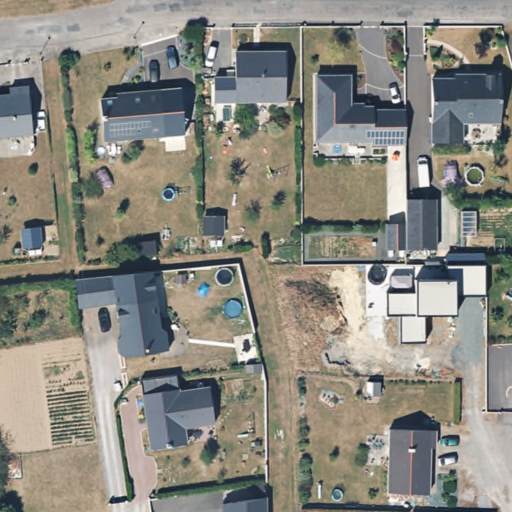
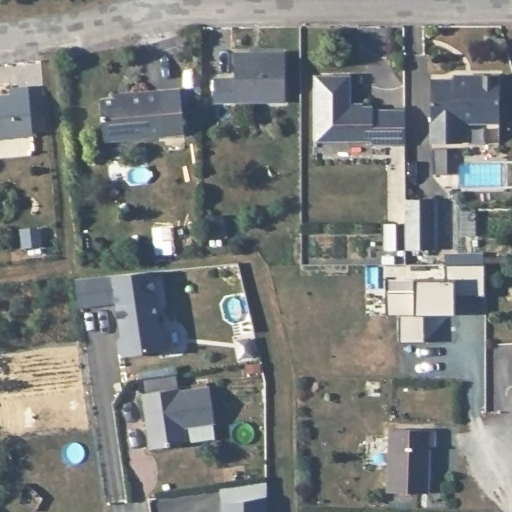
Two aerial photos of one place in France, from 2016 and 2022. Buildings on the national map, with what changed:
unchanged [(281,52),(281,102),(230,102),(231,52),(281,52)]
unchanged [(403,142),(387,142),(371,142),(370,140),(343,140),(343,141),(315,141),(314,75),(348,75),(347,105),(370,105),(370,109),(387,109),(403,109),(403,142)]
unchanged [(493,77),(494,125),(455,124),(456,144),(426,144),(425,82),(447,82),(447,77),(493,77)]
unchanged [(5,97),(4,89),(24,88),(27,137),(0,138),(0,97),(5,97)]
unchanged [(158,91),(160,138),(99,140),(98,97),(124,97),(124,92),(158,91)]
unchanged [(385,230),(403,230),(403,202),(435,202),(436,252),(403,252),(385,252),(385,230)]
unchanged [(216,217),(216,234),(197,234),(197,217),(216,217)]
unchanged [(399,315),(386,315),(385,293),(415,292),(415,281),(449,282),(450,265),(486,264),(486,295),(454,294),(454,315),(424,315),(424,341),(399,343),(399,315)]
unchanged [(78,309),(75,282),(154,274),(160,296),(119,302),(78,309)]
unchanged [(160,296),(164,326),(169,329),(172,348),(127,354),(122,351),(120,339),(126,331),(125,322),(122,322),(119,302),(160,296)]
unchanged [(183,387),(183,390),(213,386),(219,423),(188,427),(191,443),(154,448),(146,393),(183,387)]
unchanged [(432,429),(432,446),(427,446),(426,492),(385,491),(386,429),(432,429)]
unchanged [(266,496),(266,512),(221,512),(221,503),(266,496)]

